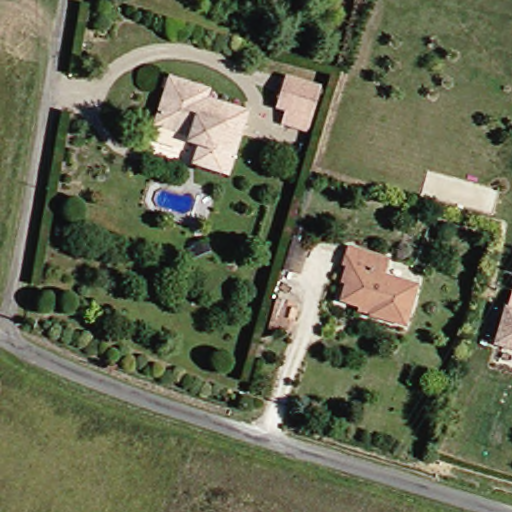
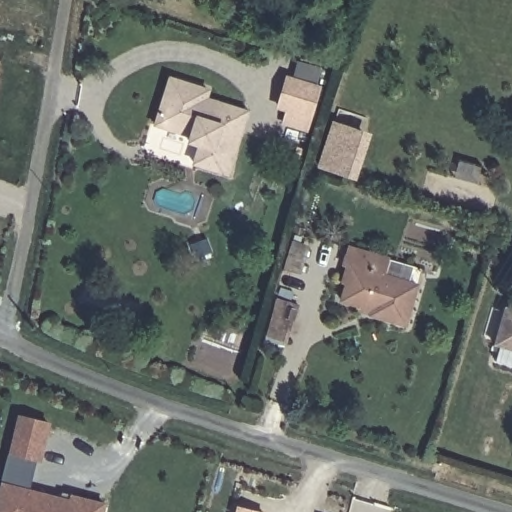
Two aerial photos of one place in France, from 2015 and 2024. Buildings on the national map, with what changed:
unchanged [(187,136),(151,125),(165,78),(205,90),(201,99),(204,99),(243,112),(224,174),(190,164),(195,145),(185,142),(187,136)]
unchanged [(280,124),(280,120),(283,110),(280,110),(275,108),(283,79),(314,87),(305,117),(301,130),(280,124)]
new [(356,181),(316,167),(332,120),(372,134),(356,181)]
unchanged [(307,245),(298,275),(285,270),(293,240),(307,245)]
unchanged [(211,252),(195,260),(191,250),(207,243),(211,252)]
unchanged [(395,325),(361,315),(362,311),(350,307),(330,301),(341,266),(335,264),(340,247),(379,259),(375,273),(375,275),(376,275),(408,285),(395,325)]
unchanged [(288,328),(287,328),(272,325),(278,300),(298,305),(295,320),(292,330),(288,328)]
unchanged [(490,350),(500,312),(512,316),(512,356),(490,350)]
new [(0,483),(16,412),(52,421),(42,464),(38,463),(32,490),(60,496),(61,492),(107,503),(105,512),(0,512),(0,483)]
new [(252,512),(240,512),(241,509),(252,512)]

